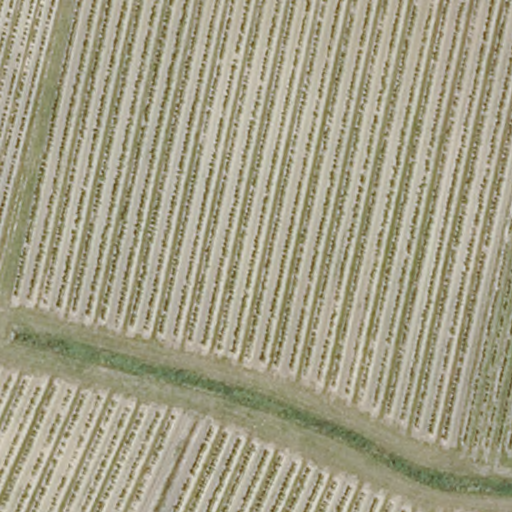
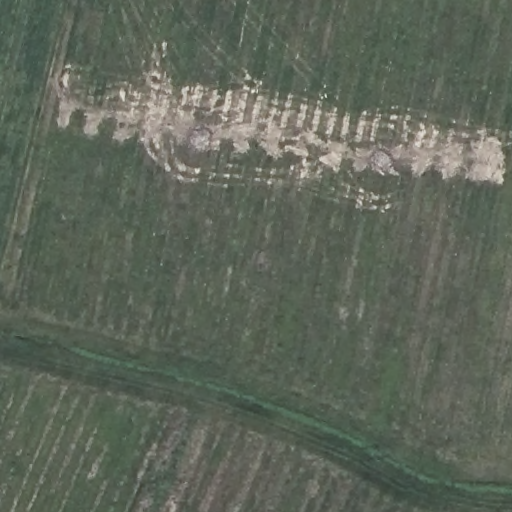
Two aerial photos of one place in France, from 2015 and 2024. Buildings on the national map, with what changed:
[]

